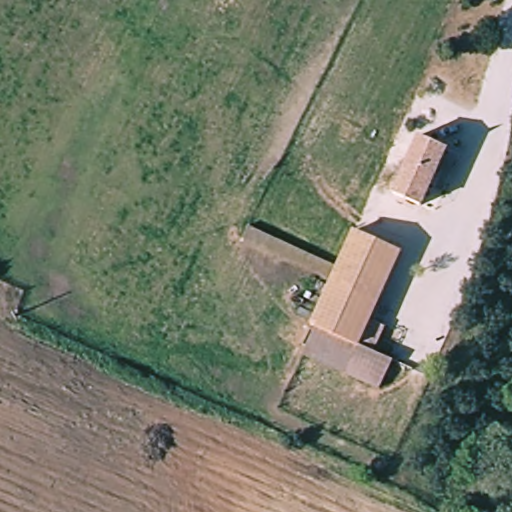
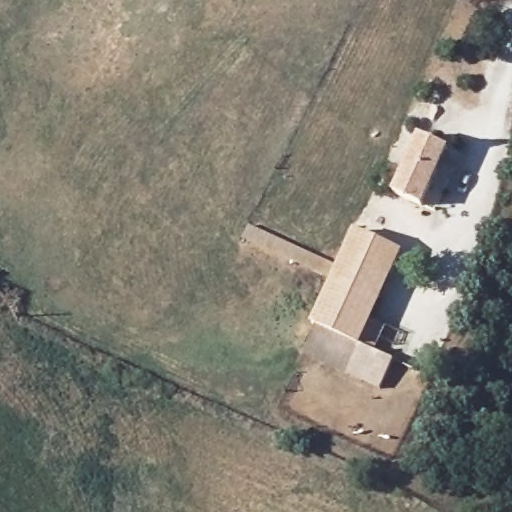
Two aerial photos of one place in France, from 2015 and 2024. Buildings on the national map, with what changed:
unchanged [(424,202),(398,190),(423,140),(450,152),(424,202)]
unchanged [(244,244),(253,225),(336,262),(327,282),(244,244)]
unchanged [(377,382),(345,368),(304,350),(316,322),(309,319),(327,282),(336,262),(352,230),(399,250),(357,343),(387,357),(377,382)]

